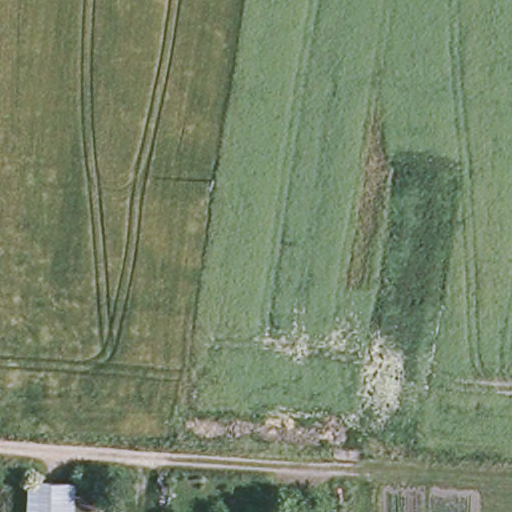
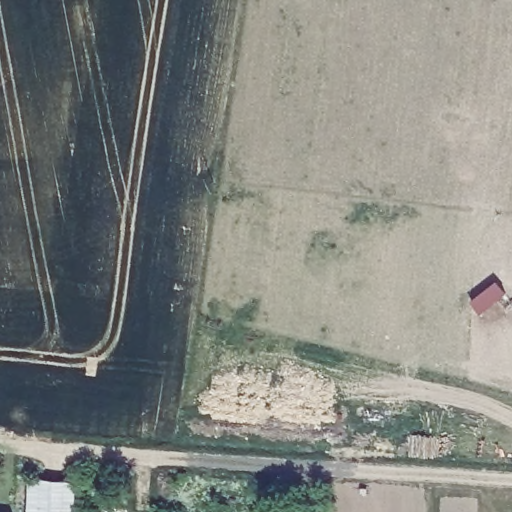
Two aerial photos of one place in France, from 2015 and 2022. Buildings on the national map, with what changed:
unchanged [(98,512),(28,512),(30,475),(101,478),(98,512)]

